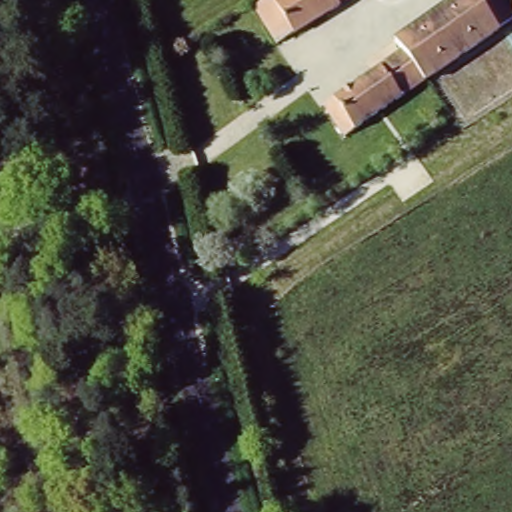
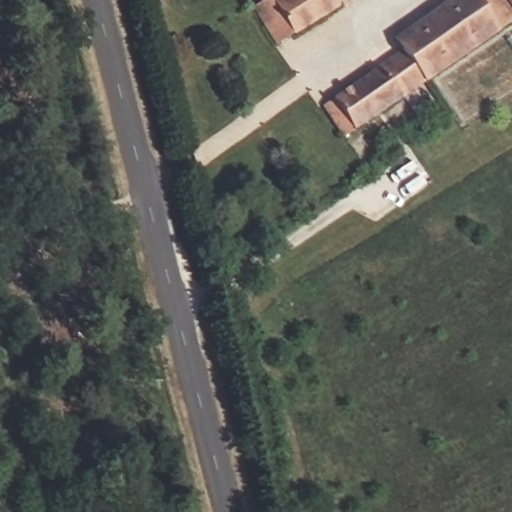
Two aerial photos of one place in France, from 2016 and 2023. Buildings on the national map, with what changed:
unchanged [(276,50),(253,10),(270,0),(340,0),(346,9),(276,50)]
unchanged [(493,42),(456,66),(350,137),(327,105),(393,60),(386,50),(461,0),(493,42)]
unchanged [(340,0),(347,0),(342,3),(340,0)]
unchanged [(461,0),(512,0),(512,26),(493,42),(461,0)]

